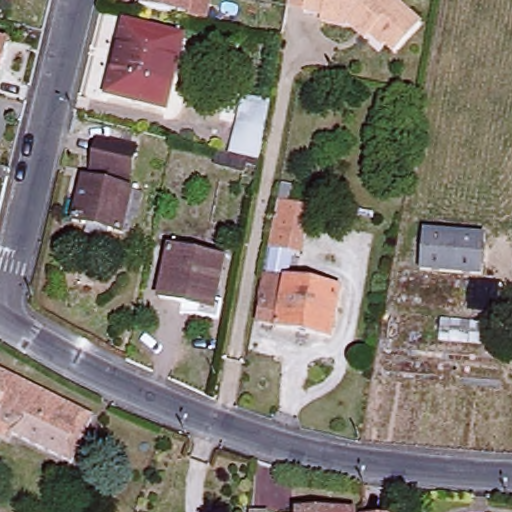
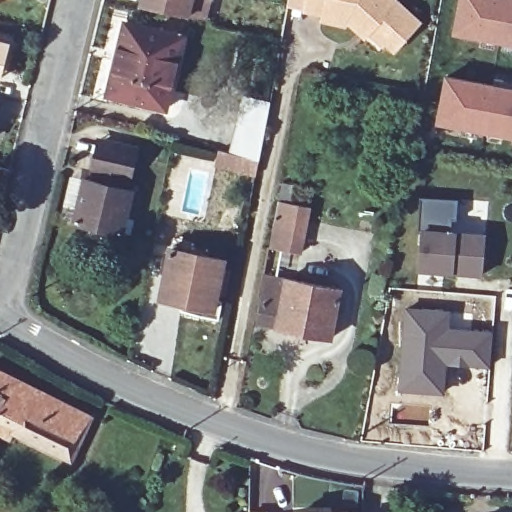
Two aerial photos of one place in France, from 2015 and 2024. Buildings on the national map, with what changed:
unchanged [(141,0),(206,0),(201,23),(139,10),(141,0)]
unchanged [(345,21),(343,25),(319,20),(320,15),(302,10),(285,7),(286,0),(394,0),(419,22),(393,51),(384,43),(381,45),(367,32),(363,37),(345,21)]
new [(512,43),(456,33),(463,0),(512,0),(512,43)]
unchanged [(161,110),(105,96),(123,24),(180,37),(161,110)]
unchanged [(7,40),(0,65),(0,39),(7,40)]
new [(504,87),(506,75),(512,76),(512,89),(512,136),(440,123),(449,77),(504,87)]
unchanged [(214,168),(216,154),(243,160),(253,110),(266,112),(257,164),(245,161),(242,175),(214,168)]
unchanged [(172,134),(166,133),(168,127),(174,129),(172,134)]
unchanged [(71,221),(81,179),(99,182),(101,175),(88,171),(96,137),(133,146),(125,180),(111,177),(109,185),(137,192),(131,216),(124,215),(120,234),(71,221)]
unchanged [(283,185),(294,188),(291,205),(307,206),(299,252),(271,247),(283,185)]
unchanged [(480,273),(419,268),(423,230),(483,233),(480,273)]
unchanged [(208,300),(214,302),(211,320),(191,317),(192,306),(159,300),(168,250),(170,239),(190,243),(189,255),(216,260),(208,300)]
unchanged [(262,272),(340,288),(330,337),(277,326),(277,323),(259,319),(262,301),(257,300),(262,272)]
demolished [(388,300),(391,275),(500,283),(496,308),(388,300)]
new [(401,305),(451,309),(450,325),(493,330),(489,367),(446,364),(443,393),(397,390),(401,305)]
unchanged [(0,434),(0,370),(91,415),(68,462),(8,431),(5,437),(0,434)]
unchanged [(357,512),(302,512),(357,511),(357,512)]

